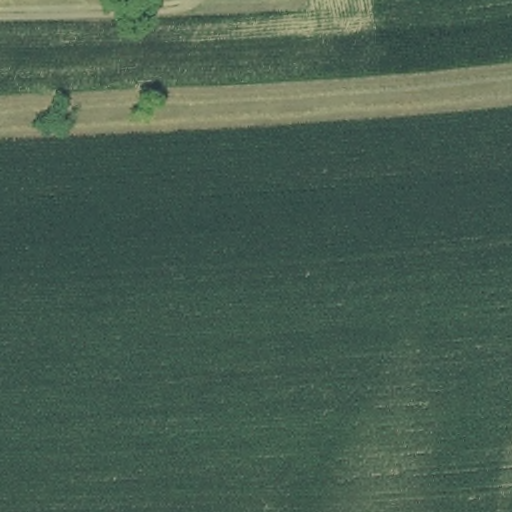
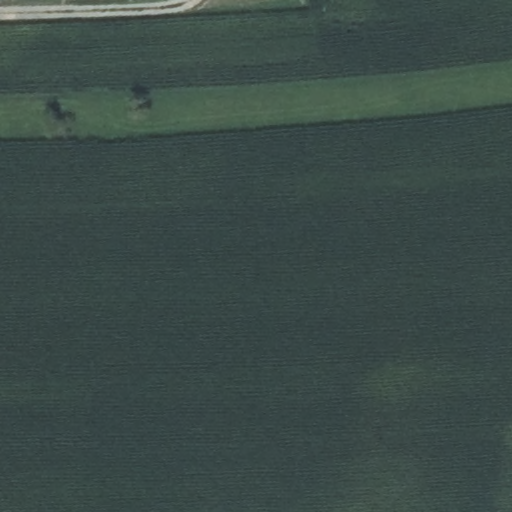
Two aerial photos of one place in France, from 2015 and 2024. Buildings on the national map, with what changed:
[]

